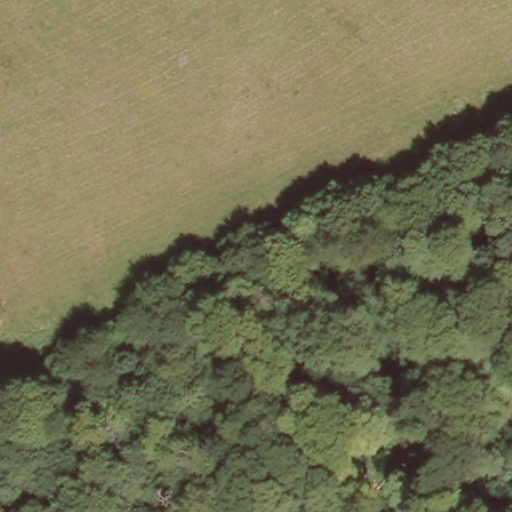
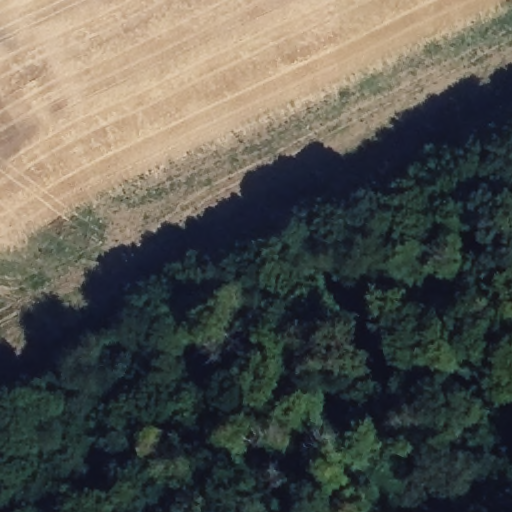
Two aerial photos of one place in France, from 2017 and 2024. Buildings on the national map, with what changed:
[]

